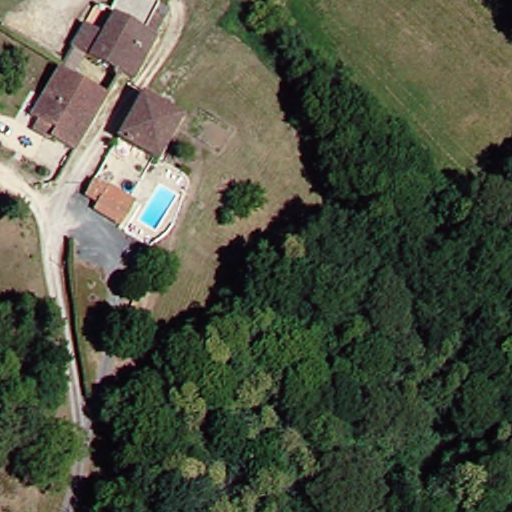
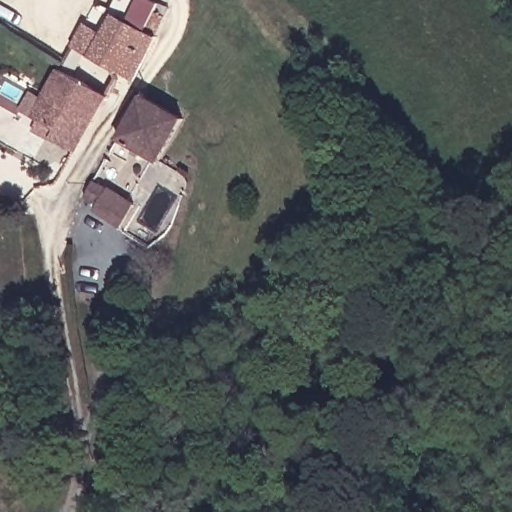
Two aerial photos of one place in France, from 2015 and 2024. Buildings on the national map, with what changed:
unchanged [(120,7),(122,8),(127,0),(148,0),(159,9),(151,39),(114,17),(120,7)]
unchanged [(80,58),(71,54),(79,40),(90,20),(107,30),(114,17),(151,39),(152,40),(132,87),(107,73),(80,58)]
unchanged [(37,121),(28,116),(57,68),(106,98),(71,153),(47,139),(31,130),(37,121)]
unchanged [(180,121),(154,159),(115,136),(141,97),(180,121)]
unchanged [(124,228),(97,214),(100,207),(85,200),(93,181),(137,200),(124,228)]

